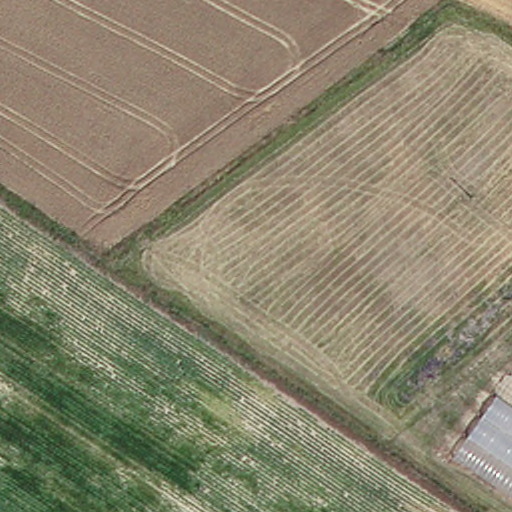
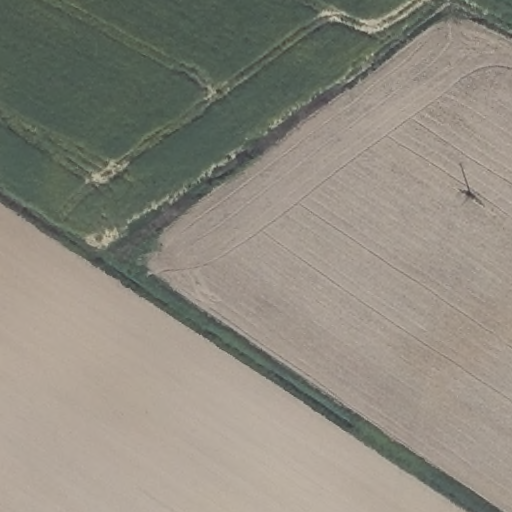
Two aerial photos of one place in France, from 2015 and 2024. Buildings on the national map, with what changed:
demolished [(451,462),(508,372),(512,374),(512,503),(451,462)]

